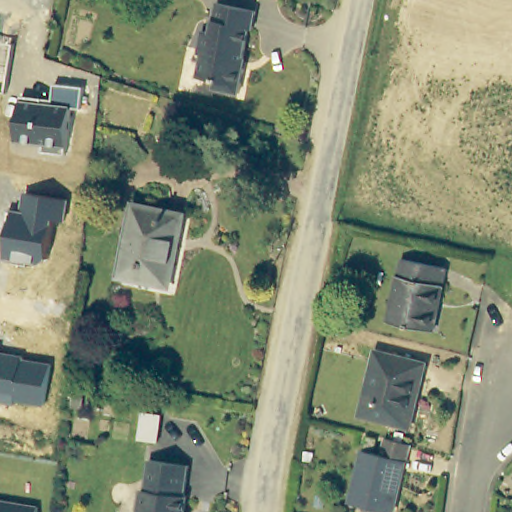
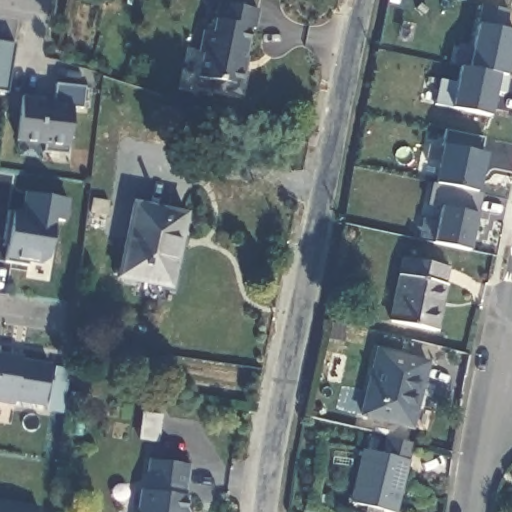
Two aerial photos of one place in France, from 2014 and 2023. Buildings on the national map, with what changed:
unchanged [(213,33),(220,3),(259,12),(255,30),(251,29),(242,69),(245,69),(239,94),(214,88),(215,81),(198,77),(204,55),(200,49),(204,31),(213,33)]
new [(508,30),(512,31),(512,49),(506,77),(503,94),(494,90),(488,117),(434,106),(440,78),(456,82),(460,65),(468,67),(480,5),(510,11),(508,30)]
unchanged [(5,93),(0,93),(0,41),(14,43),(5,93)]
unchanged [(53,100),(55,85),(83,87),(80,107),(73,107),(66,154),(42,152),(43,144),(16,141),(21,96),(53,100)]
new [(483,152),(487,153),(479,194),(481,194),(477,214),(440,207),(439,210),(428,207),(434,183),(442,143),(444,130),(484,138),(483,152)]
unchanged [(20,211),(23,191),(68,199),(64,221),(55,220),(50,256),(39,264),(0,259),(5,209),(20,211)]
unchanged [(136,203),(191,215),(187,238),(181,237),(171,284),(142,278),(141,282),(120,277),(136,203)]
new [(440,207),(477,214),(468,252),(431,243),(440,207)]
unchanged [(451,263),(436,326),(393,316),(408,253),(451,263)]
unchanged [(429,361),(425,378),(422,377),(416,406),(419,406),(415,426),(364,415),(378,350),(429,361)]
unchanged [(21,359),(49,364),(42,405),(15,401),(14,405),(0,403),(0,352),(21,355),(21,359)]
unchanged [(411,460),(398,512),(392,512),(355,502),(369,450),(411,460)]
unchanged [(142,496),(146,493),(150,462),(191,467),(187,498),(188,499),(187,512),(139,512),(142,496)]
unchanged [(33,512),(0,512),(0,501),(33,506),(33,512)]

